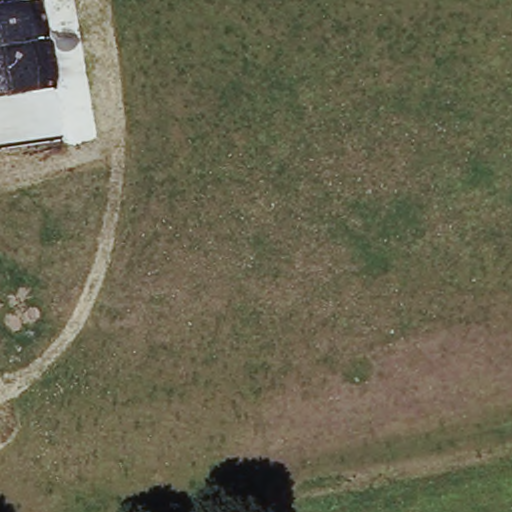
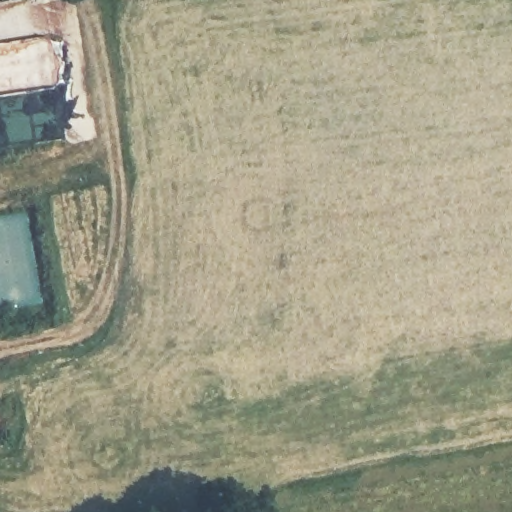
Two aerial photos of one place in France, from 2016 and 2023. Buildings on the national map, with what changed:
[]

